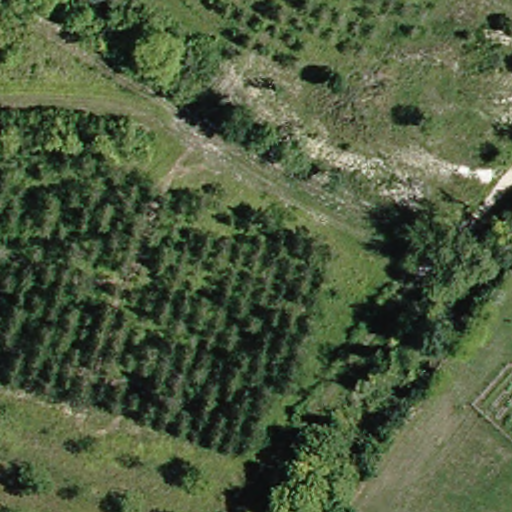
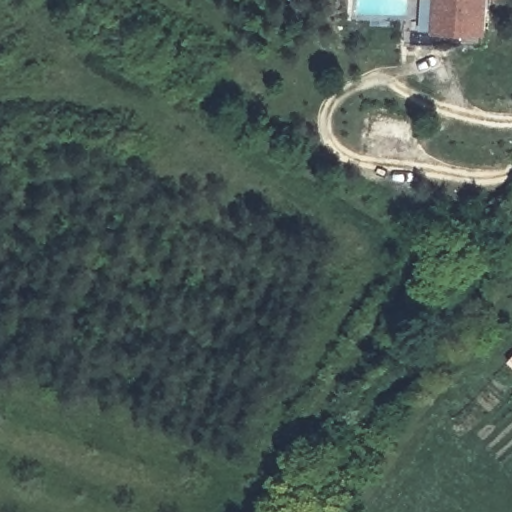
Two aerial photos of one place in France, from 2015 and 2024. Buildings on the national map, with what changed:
new [(436,35),(420,34),(420,0),(484,0),(484,36),(436,35)]

